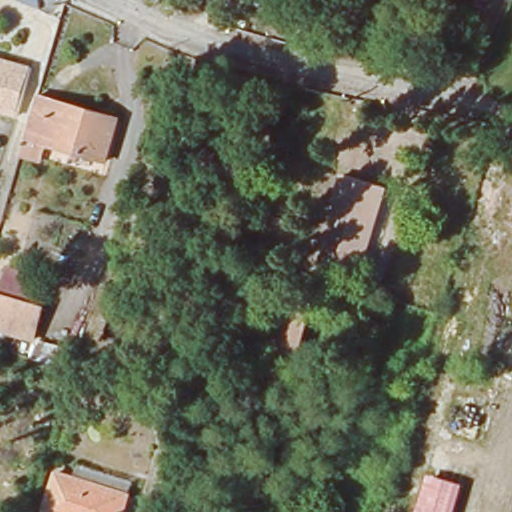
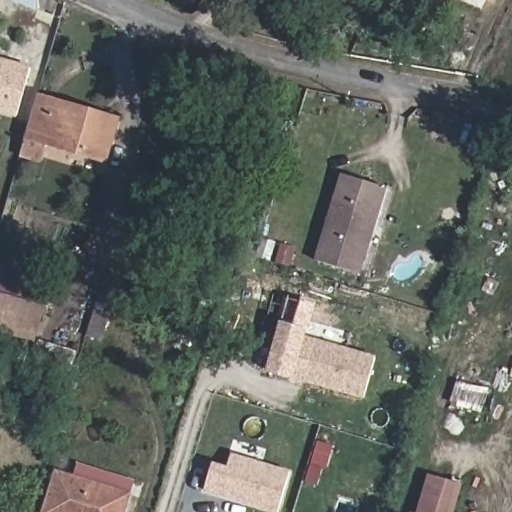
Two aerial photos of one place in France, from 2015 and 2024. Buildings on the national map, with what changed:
unchanged [(486,3),(481,0),(488,0),(486,3)]
unchanged [(29,71),(14,117),(0,113),(0,61),(29,71)]
unchanged [(38,95),(100,114),(98,123),(114,128),(104,163),(26,139),(38,95)]
unchanged [(391,176),(364,270),(320,256),(347,164),(391,176)]
unchanged [(8,267),(37,276),(32,302),(46,306),(34,344),(0,338),(0,291),(8,267)]
unchanged [(89,337),(105,280),(119,285),(102,342),(89,337)]
new [(265,373),(289,295),(317,301),(306,337),(375,357),(363,400),(265,373)]
demolished [(312,321),(298,367),(274,358),(285,312),(312,321)]
new [(456,383),(487,392),(482,413),(450,405),(456,383)]
new [(270,512),(204,492),(214,462),(228,467),(232,453),(290,471),(283,493),(278,512),(270,512)]
unchanged [(74,481),(104,490),(98,512),(40,512),(51,474),(74,481)]
new [(417,512),(428,475),(462,485),(454,512),(417,512)]
unchanged [(130,497),(126,512),(98,512),(104,490),(130,497)]

